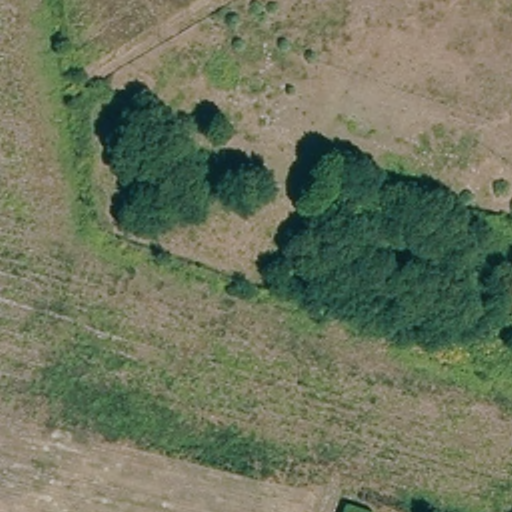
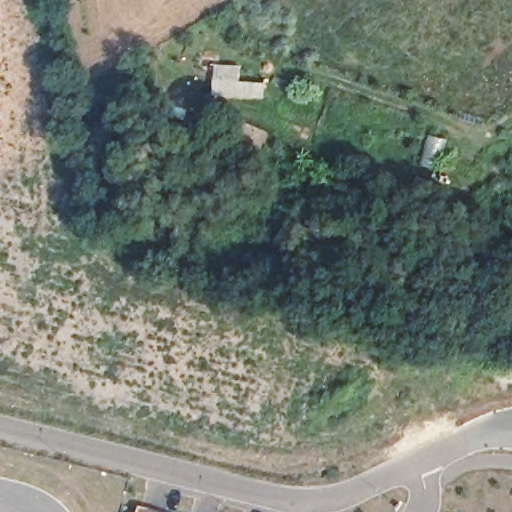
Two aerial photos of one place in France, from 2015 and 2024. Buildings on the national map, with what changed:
new [(140,506),(162,510),(161,512),(138,512),(140,506)]

